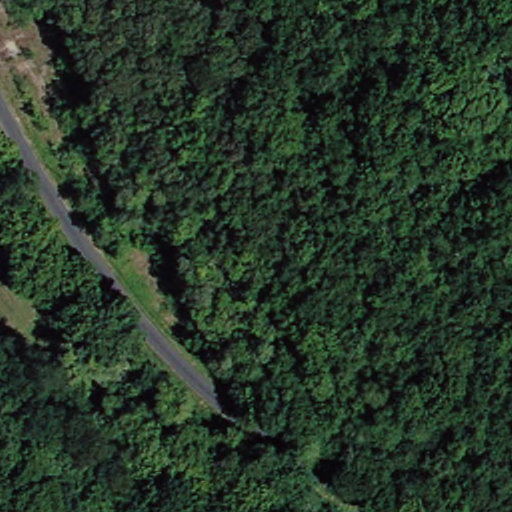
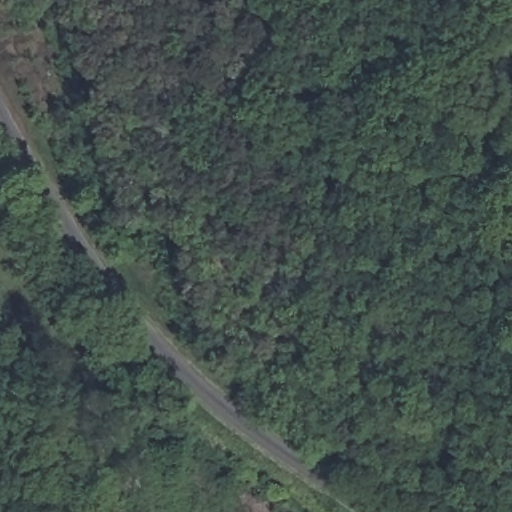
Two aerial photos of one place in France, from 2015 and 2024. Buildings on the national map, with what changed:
[]

